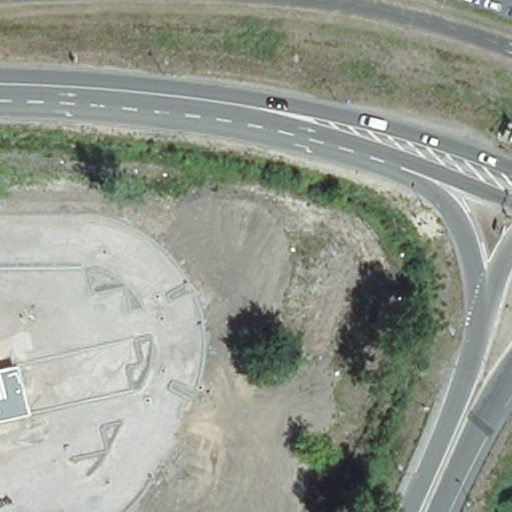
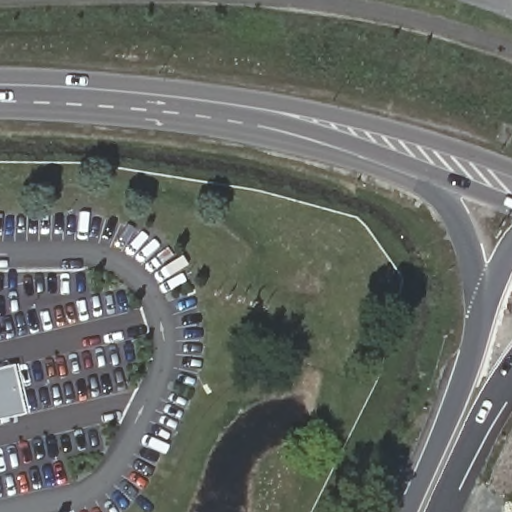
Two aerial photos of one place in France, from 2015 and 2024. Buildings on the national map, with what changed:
unchanged [(0,369),(14,365),(25,413),(0,420),(0,369)]

